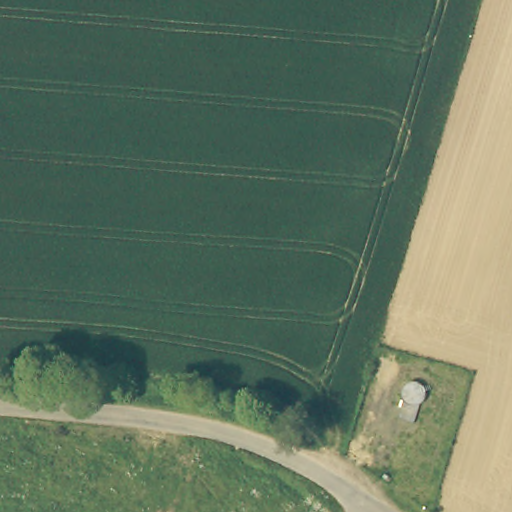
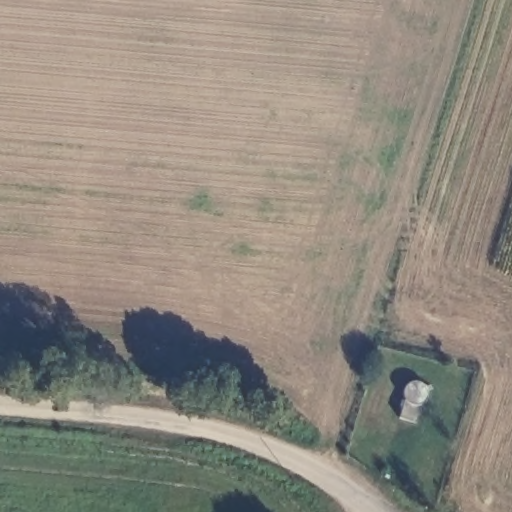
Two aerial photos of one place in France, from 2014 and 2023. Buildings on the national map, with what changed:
unchanged [(401,395),(401,390),(403,386),(406,383),(410,381),(415,380),(419,381),(422,384),(425,387),(426,392),(426,396),(423,400),(419,404),(414,422),(397,417),(403,400),(401,395)]

